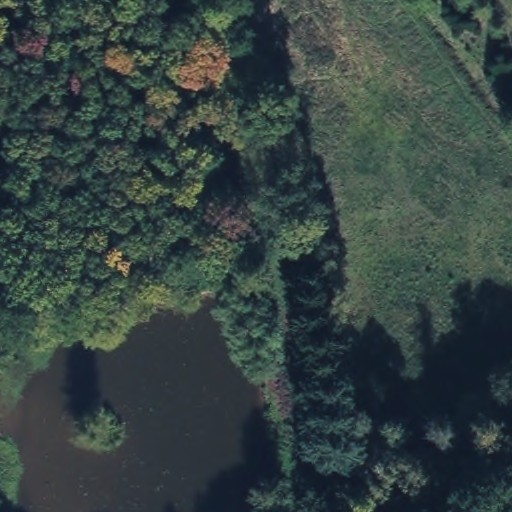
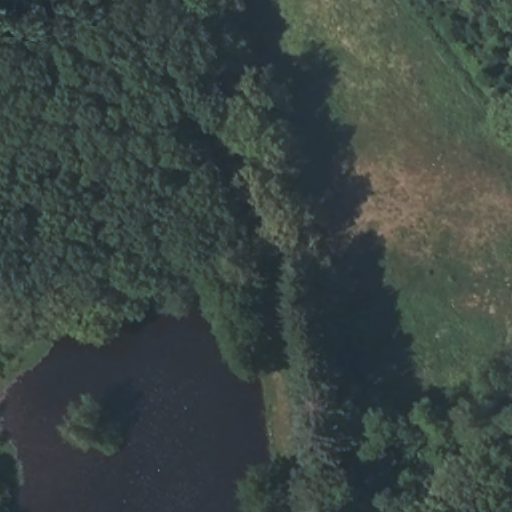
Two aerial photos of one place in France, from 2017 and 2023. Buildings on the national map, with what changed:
[]

